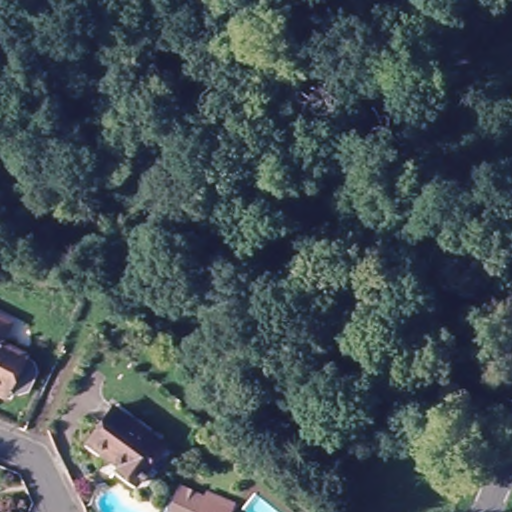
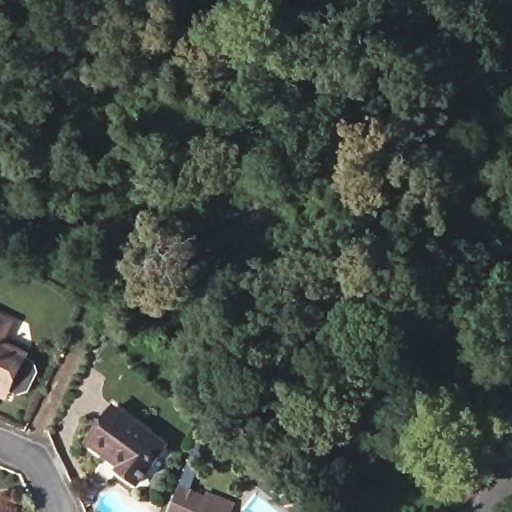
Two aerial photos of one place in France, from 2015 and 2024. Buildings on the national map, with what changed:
unchanged [(0,327),(6,330),(1,344),(26,354),(23,363),(31,366),(36,375),(31,385),(23,389),(14,385),(10,393),(8,399),(0,396),(0,327)]
unchanged [(171,453),(141,491),(121,475),(124,471),(94,445),(120,413),(171,453)]
unchanged [(237,503),(233,512),(197,512),(207,490),(237,503)]

